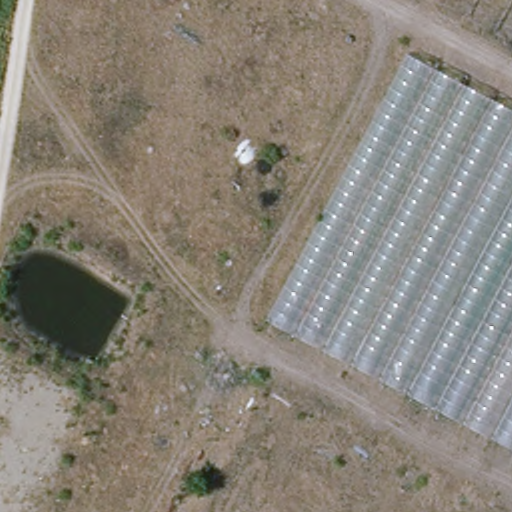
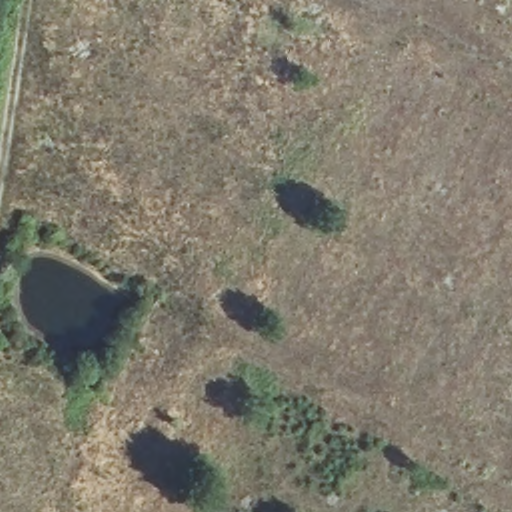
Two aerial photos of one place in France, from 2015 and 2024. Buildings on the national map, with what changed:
demolished [(428,64),(512,108),(512,449),(291,330),(428,64)]

